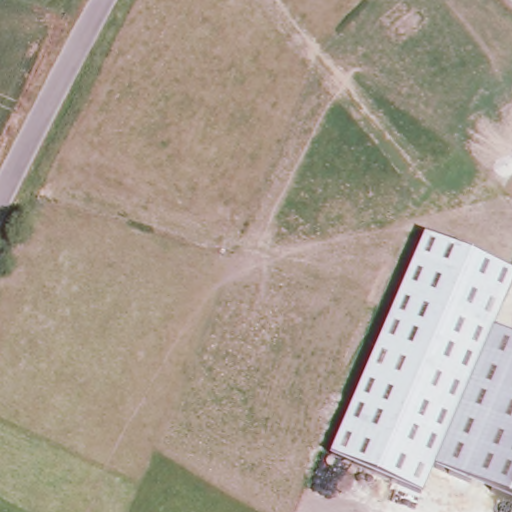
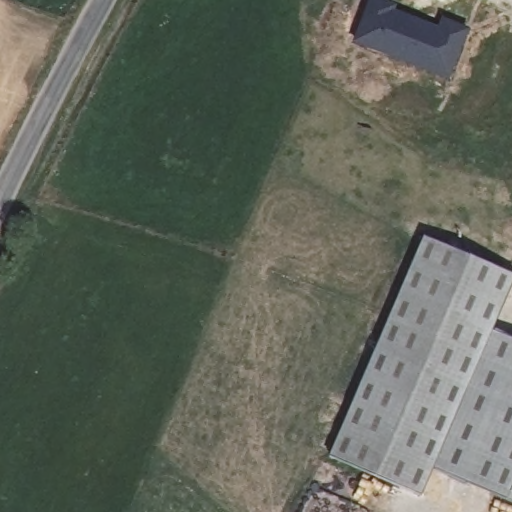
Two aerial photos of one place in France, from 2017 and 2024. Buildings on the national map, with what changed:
new [(370,0),(388,0),(398,5),(396,10),(438,26),(442,17),(470,28),(450,81),(352,42),(370,0)]
unchanged [(330,456),(424,236),(512,274),(512,286),(495,326),(435,464),(420,497),(330,456)]
unchanged [(512,497),(435,464),(495,326),(512,334),(512,497)]

